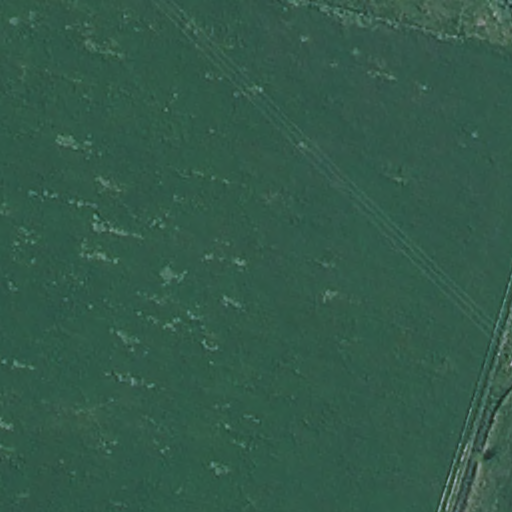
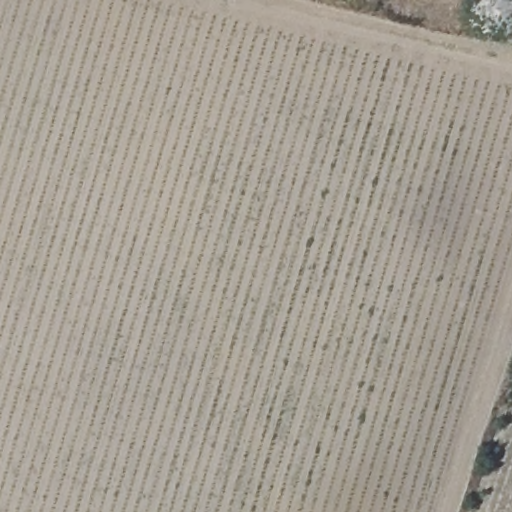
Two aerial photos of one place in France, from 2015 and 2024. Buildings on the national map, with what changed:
[]

